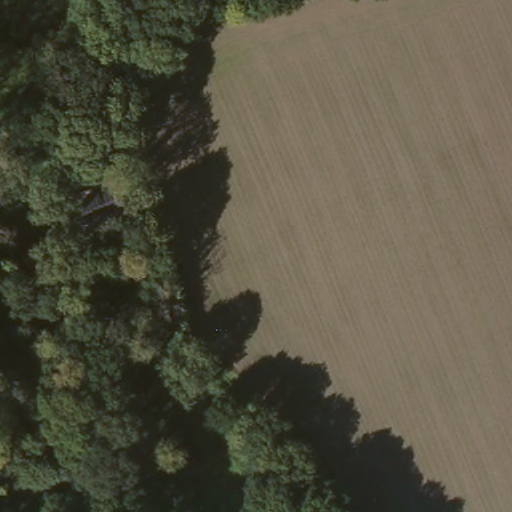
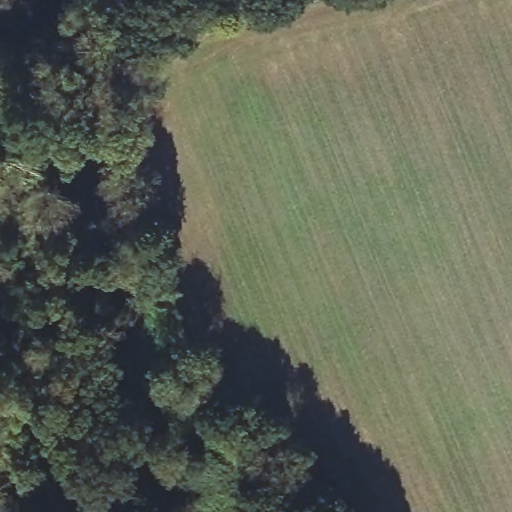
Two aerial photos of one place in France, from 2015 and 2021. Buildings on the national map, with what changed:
unchanged [(120,214),(104,222),(87,232),(74,239),(61,214),(106,189),(120,214)]

